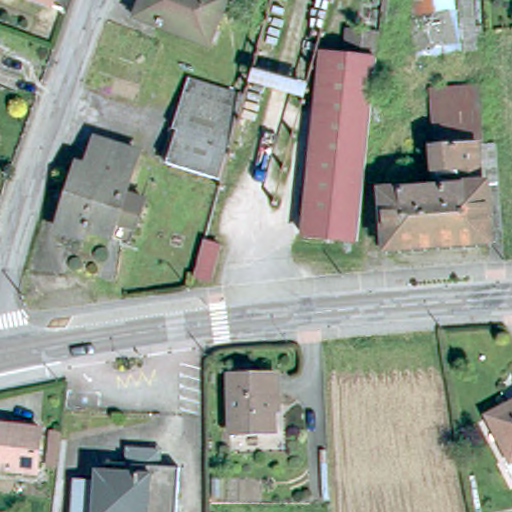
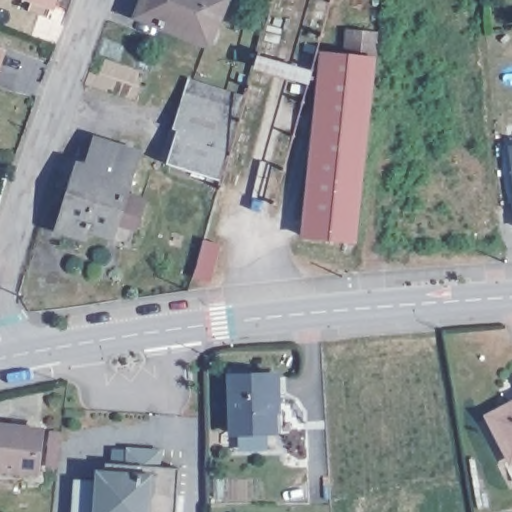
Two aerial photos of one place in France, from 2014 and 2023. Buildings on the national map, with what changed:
unchanged [(52,4),(43,0),(54,0),(52,4)]
unchanged [(140,10),(144,0),(227,0),(208,46),(158,25),(137,17),(140,10)]
unchanged [(345,60),(347,37),(379,40),(372,100),(357,248),(302,242),(311,161),(327,163),(337,59),(345,60)]
unchanged [(0,48),(0,45),(1,46),(0,48)]
unchanged [(0,65),(0,51),(5,53),(0,65)]
unchanged [(311,161),(322,58),(337,59),(327,163),(311,161)]
unchanged [(166,162),(187,95),(191,80),(244,97),(240,112),(221,179),(166,162)]
unchanged [(65,230),(82,174),(91,176),(102,142),(144,155),(130,195),(150,202),(141,229),(122,223),(117,238),(93,230),(91,238),(65,230)]
demolished [(475,145),(475,146),(491,145),(498,241),(383,249),(379,193),(433,189),(431,148),(475,145)]
new [(510,149),(512,148),(512,163),(510,149)]
unchanged [(205,241),(221,246),(211,281),(195,276),(205,241)]
unchanged [(277,374),(277,397),(272,397),(272,433),(232,432),(232,374),(277,374)]
unchanged [(509,490),(487,449),(496,439),(487,418),(512,403),(512,488),(509,490)]
unchanged [(0,469),(0,427),(44,432),(39,474),(0,469)]
unchanged [(105,482),(107,464),(127,465),(129,447),(147,449),(166,450),(164,468),(180,469),(178,512),(73,512),(76,480),(105,482)]

